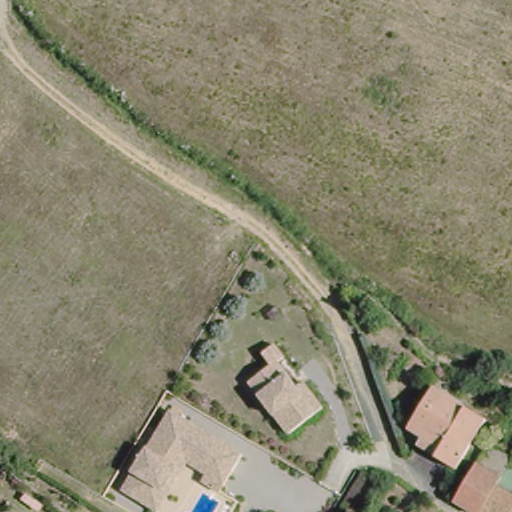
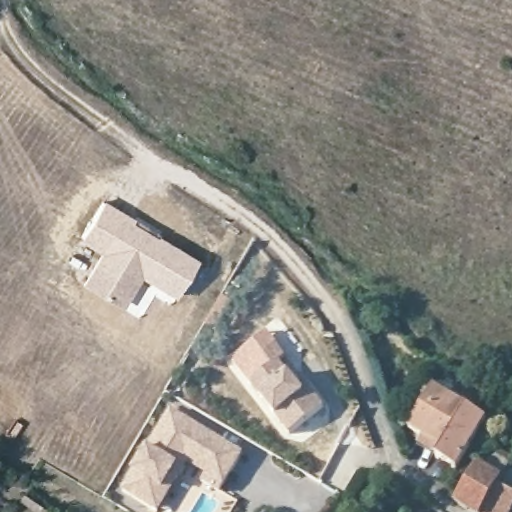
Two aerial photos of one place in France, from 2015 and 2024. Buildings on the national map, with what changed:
new [(114,301),(83,284),(105,250),(82,236),(102,202),(131,219),(133,215),(161,230),(158,237),(197,260),(176,295),(161,286),(162,282),(134,266),(114,301)]
unchanged [(281,337),(289,349),(280,358),(307,392),(318,384),(330,398),(294,430),(250,381),(270,362),(263,354),(281,337)]
unchanged [(429,389),(483,419),(454,470),(435,460),(439,451),(406,432),(429,389)]
unchanged [(167,410),(241,453),(225,480),(184,456),(155,505),(123,487),(167,410)]
unchanged [(457,501),(479,463),(490,447),(512,456),(509,466),(512,467),(512,512),(475,512),(457,501)]

